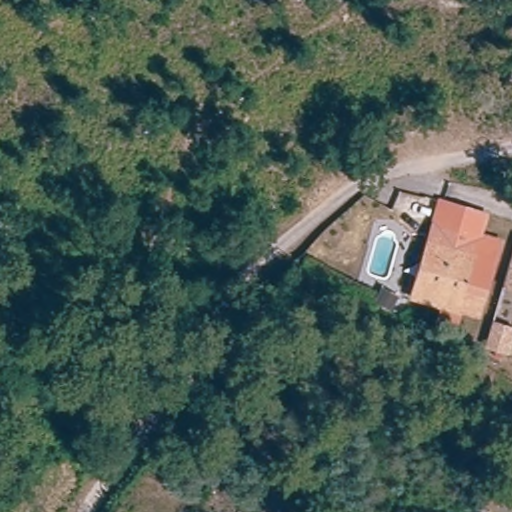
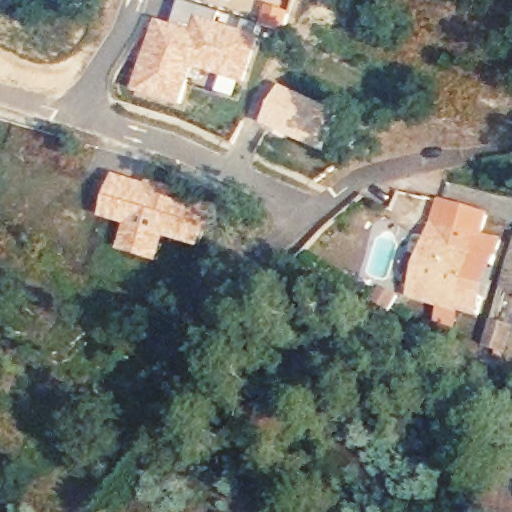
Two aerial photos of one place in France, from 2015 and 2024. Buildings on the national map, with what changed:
new [(293,1),(290,0),(294,0),(293,1)]
new [(173,25),(181,1),(223,14),(221,22),(262,36),(238,102),(216,95),(221,80),(194,73),(181,111),(134,95),(156,20),(173,25)]
new [(266,5),(290,13),(284,33),(259,25),(266,5)]
new [(282,86),(343,115),(325,156),(263,127),(282,86)]
new [(116,174),(186,196),(184,202),(210,212),(200,250),(167,241),(159,265),(118,253),(125,228),(101,220),(116,174)]
unchanged [(434,319),(439,303),(409,293),(421,256),(440,199),(488,214),(482,234),(500,240),(492,267),(482,296),(476,314),(458,309),(453,325),(434,319)]
unchanged [(512,268),(512,283),(508,282),(512,268)]
unchanged [(512,346),(510,351),(489,344),(497,319),(512,324),(512,346)]

